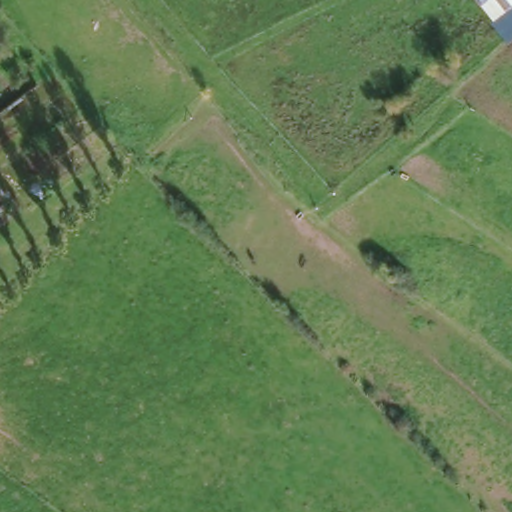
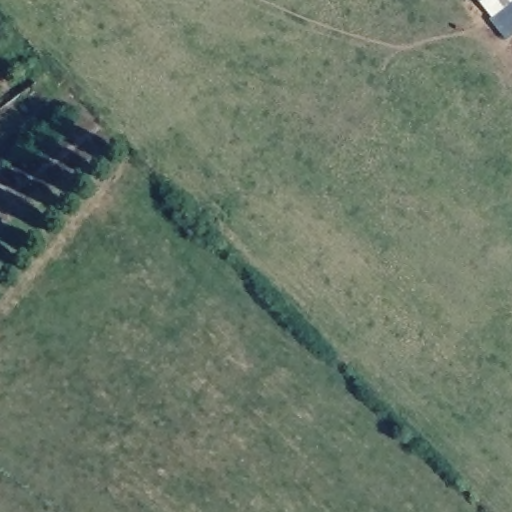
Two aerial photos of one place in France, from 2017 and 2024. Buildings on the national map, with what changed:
unchanged [(495,24),(476,0),(512,0),(512,8),(495,24)]

